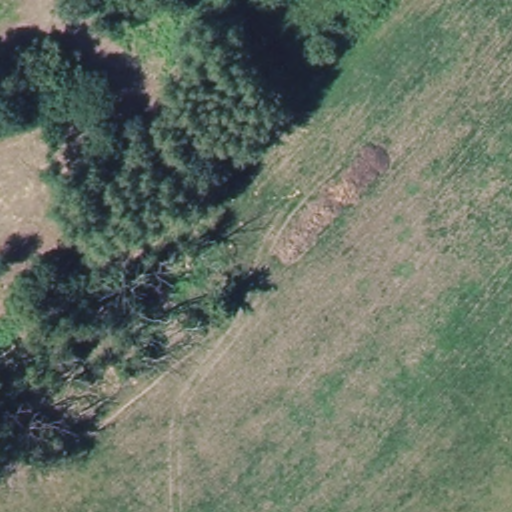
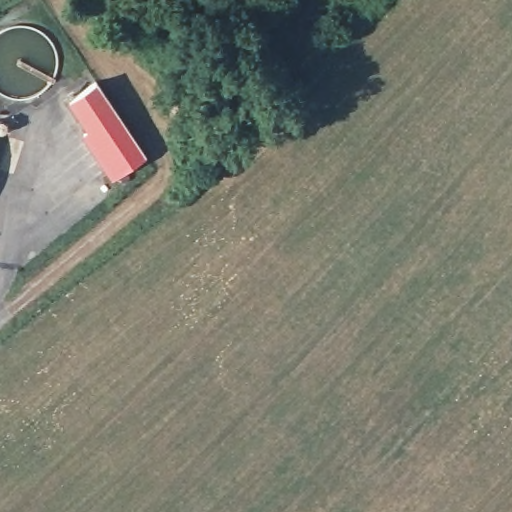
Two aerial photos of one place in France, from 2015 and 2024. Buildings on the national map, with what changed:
new [(112,177),(81,131),(86,128),(66,100),(95,82),(144,155),(112,177)]

